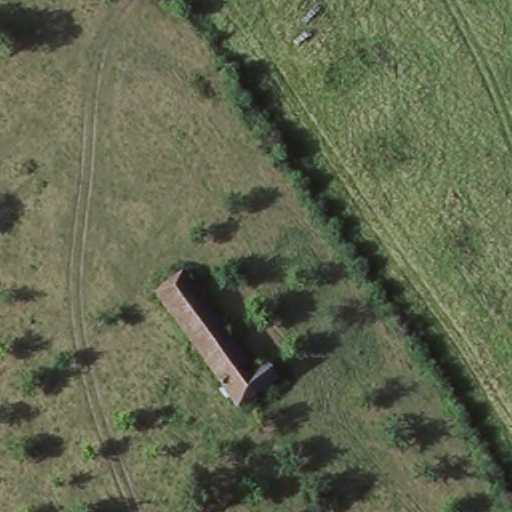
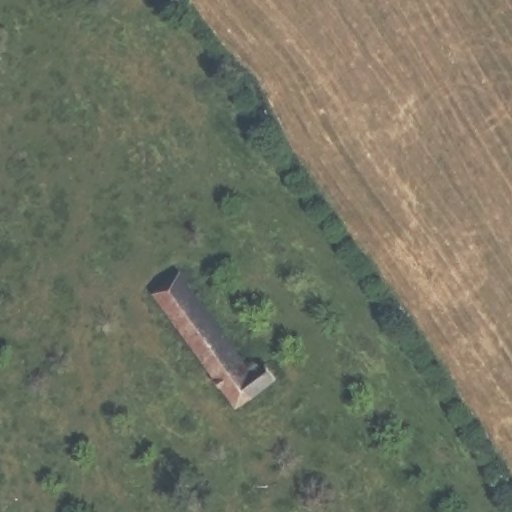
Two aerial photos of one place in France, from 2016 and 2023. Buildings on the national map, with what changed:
unchanged [(249,372),(262,362),(276,381),(239,412),(146,297),(172,275),(249,372)]

